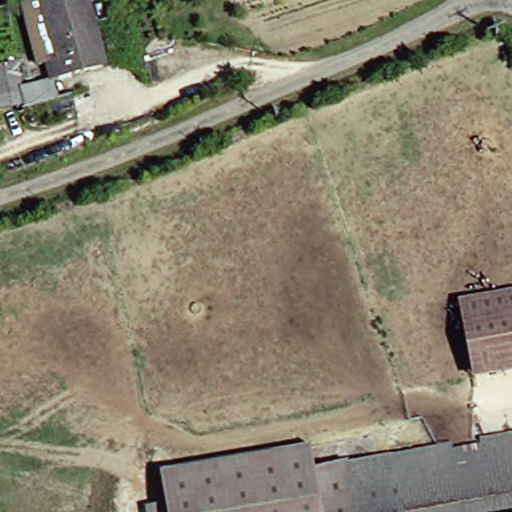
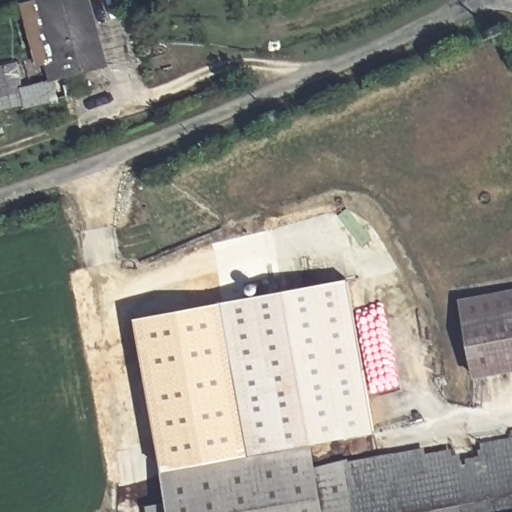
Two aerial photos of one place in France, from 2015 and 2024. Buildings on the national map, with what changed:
unchanged [(105,66),(51,80),(43,53),(54,50),(40,0),(88,0),(105,66)]
unchanged [(0,112),(0,58),(8,55),(21,106),(0,112)]
new [(346,279),(374,431),(305,445),(243,455),(217,303),(346,279)]
unchanged [(475,296),(512,289),(512,321),(478,326),(475,296)]
new [(243,455),(161,469),(135,319),(217,303),(243,455)]
unchanged [(489,373),(478,326),(512,321),(512,369),(489,373)]
unchanged [(472,440),(512,435),(512,512),(402,512),(401,502),(353,512),(350,512),(346,484),(343,466),(472,440)]
unchanged [(346,484),(350,512),(142,512),(141,509),(159,503),(155,471),(243,455),(305,445),(311,472),(343,466),(346,484)]
unchanged [(402,512),(353,512),(401,502),(402,512)]

